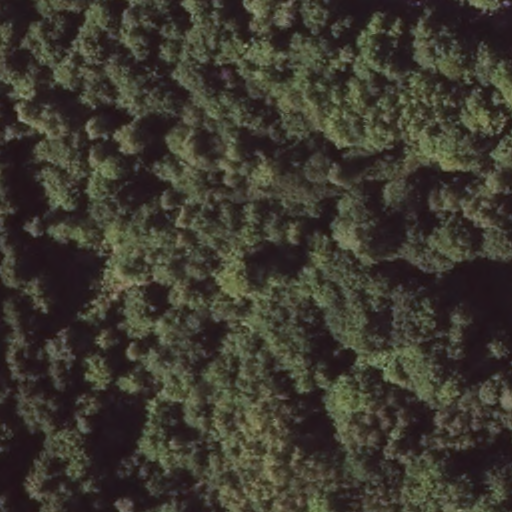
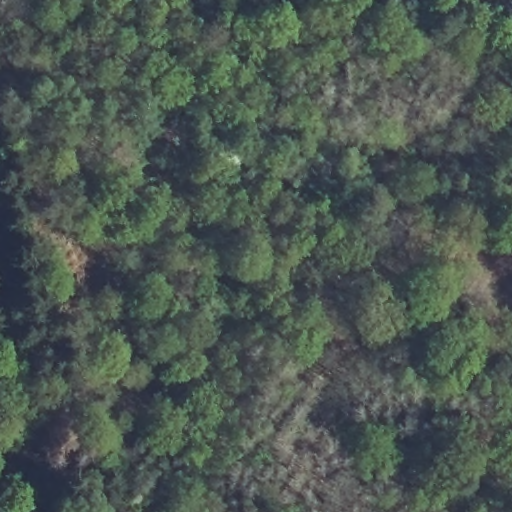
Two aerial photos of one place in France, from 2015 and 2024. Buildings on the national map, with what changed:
[]

